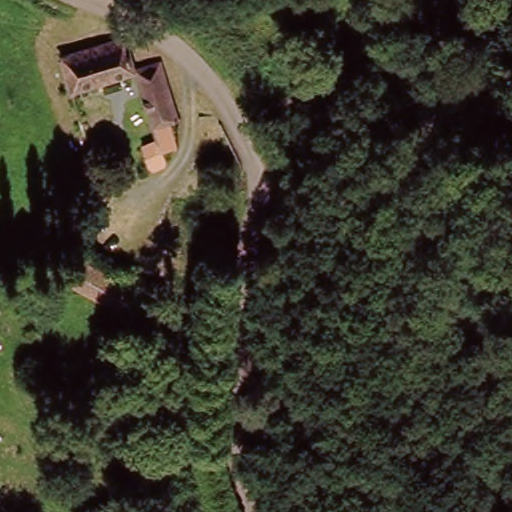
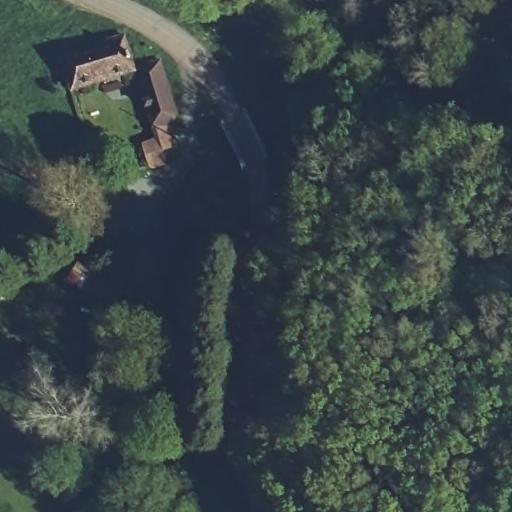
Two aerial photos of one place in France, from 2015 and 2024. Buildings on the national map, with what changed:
unchanged [(143,141),(154,138),(133,70),(70,88),(60,55),(122,36),(132,66),(160,57),(178,116),(167,119),(175,145),(164,147),(167,160),(150,165),(143,141)]
unchanged [(80,256),(135,282),(121,310),(67,281),(80,256)]

